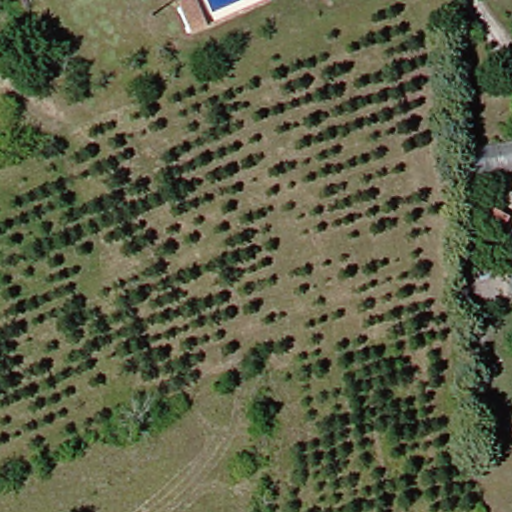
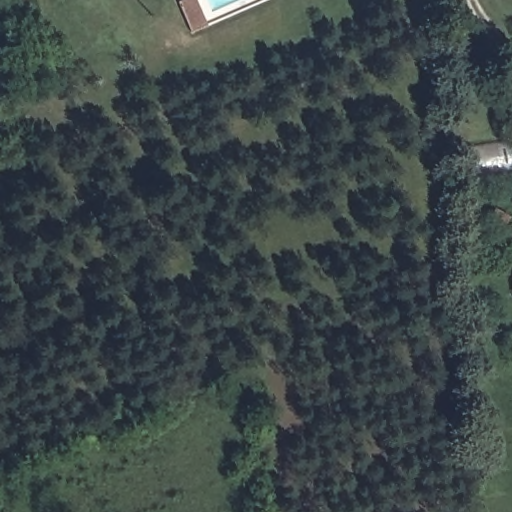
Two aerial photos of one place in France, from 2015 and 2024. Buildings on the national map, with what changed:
unchanged [(204,29),(191,0),(210,0),(220,21),(204,29)]

